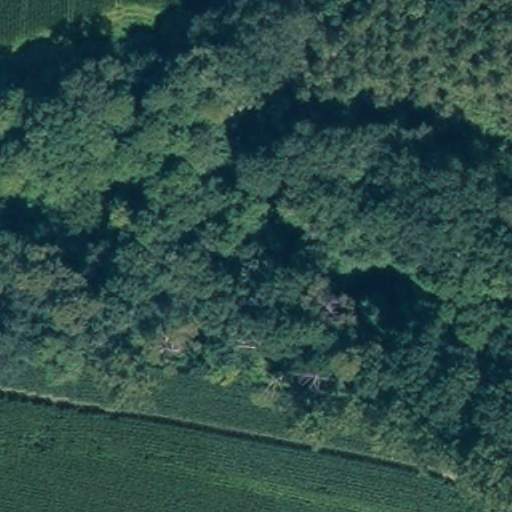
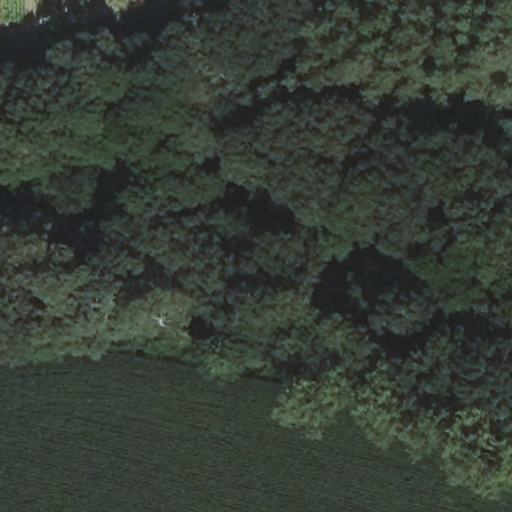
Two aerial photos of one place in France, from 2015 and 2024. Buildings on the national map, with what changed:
[]

